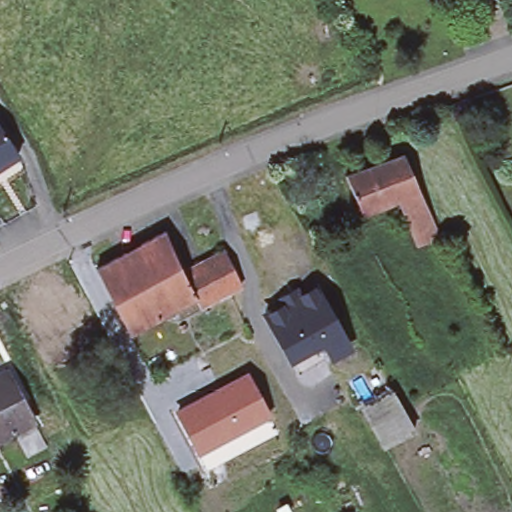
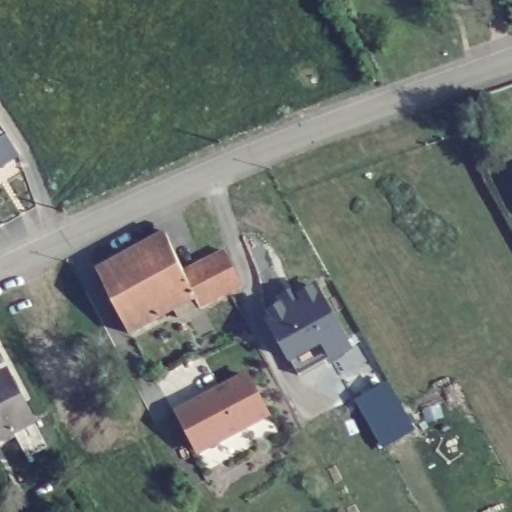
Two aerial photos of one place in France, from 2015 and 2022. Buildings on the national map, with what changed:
unchanged [(18,150),(0,162),(0,122),(18,150)]
demolished [(440,237),(420,247),(410,222),(401,199),(386,162),(402,156),(429,214),(431,218),(440,237)]
demolished [(369,167),(386,162),(401,199),(361,214),(345,176),(369,167)]
unchanged [(164,232),(183,272),(194,297),(172,308),(155,317),(122,255),(164,232)]
unchanged [(224,251),(240,283),(176,317),(172,308),(194,297),(183,272),(224,251)]
unchanged [(122,255),(155,317),(128,332),(96,270),(122,255)]
unchanged [(285,303),(282,297),(315,282),(350,350),(330,360),(320,346),(288,362),(261,312),(285,303)]
unchanged [(5,369),(32,420),(12,431),(0,408),(0,372),(5,369)]
unchanged [(270,416),(198,454),(173,408),(247,371),(270,416)]
unchanged [(360,407),(391,388),(416,432),(384,449),(360,407)]
unchanged [(12,431),(0,437),(0,408),(12,431)]

